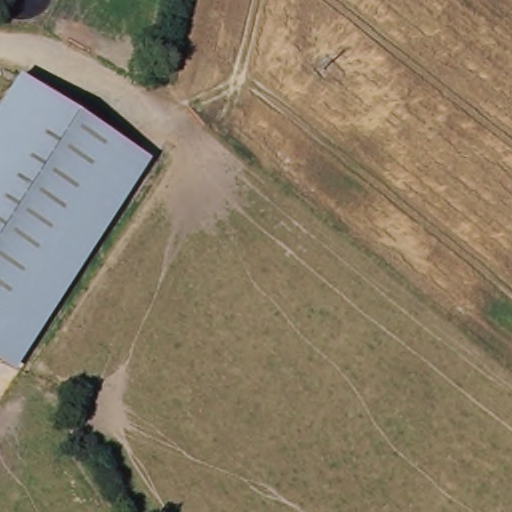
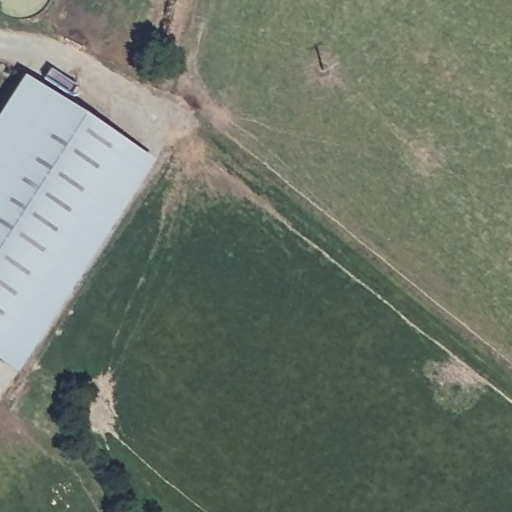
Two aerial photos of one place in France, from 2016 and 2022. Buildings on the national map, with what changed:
unchanged [(147,161),(11,371),(0,364),(0,141),(34,88),(147,161)]

